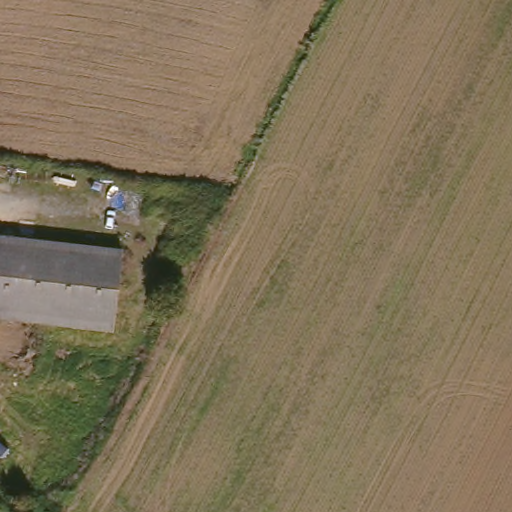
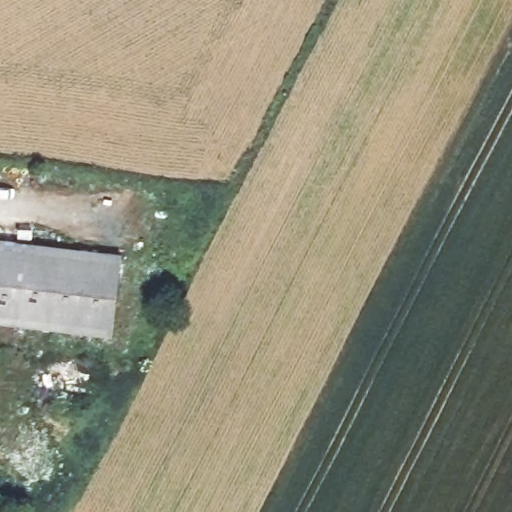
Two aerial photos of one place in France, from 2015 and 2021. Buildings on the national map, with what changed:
unchanged [(117,340),(0,322),(0,240),(127,257),(117,340)]

